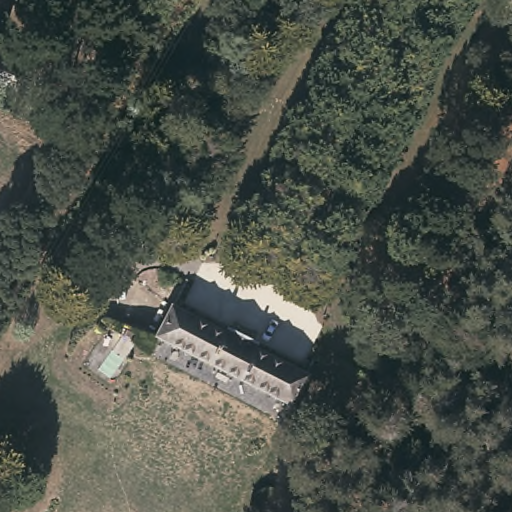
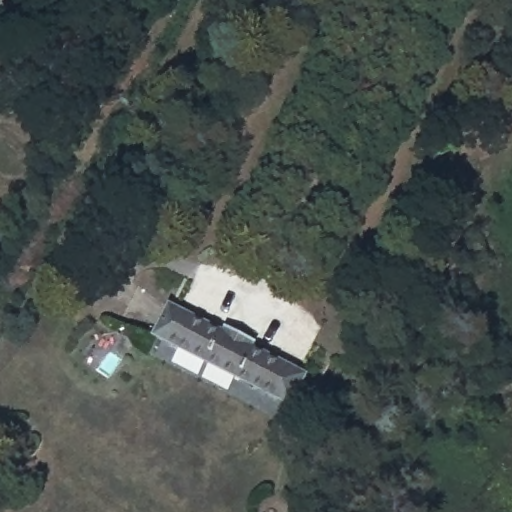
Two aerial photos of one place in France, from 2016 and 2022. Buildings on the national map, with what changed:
unchanged [(12,93),(0,86),(0,61),(22,73),(12,93)]
unchanged [(221,330),(225,325),(253,340),(251,345),(304,372),(289,403),(285,400),(157,335),(153,333),(170,303),(221,330)]

